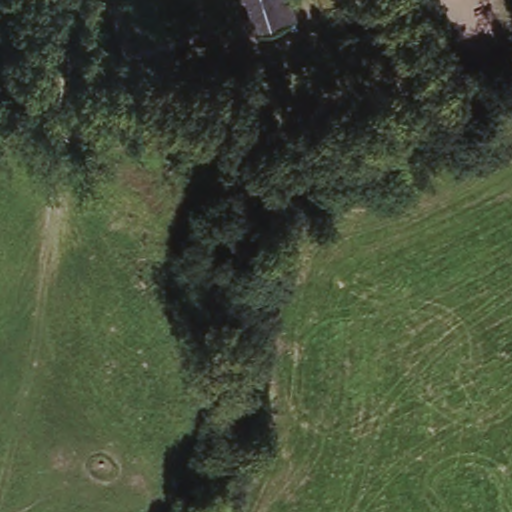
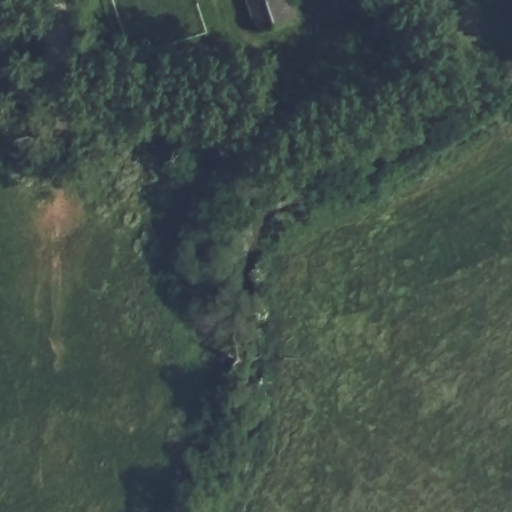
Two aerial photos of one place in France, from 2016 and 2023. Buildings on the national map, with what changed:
unchanged [(287,6),(296,4),(302,21),(263,34),(252,0),(285,0),(287,6)]

